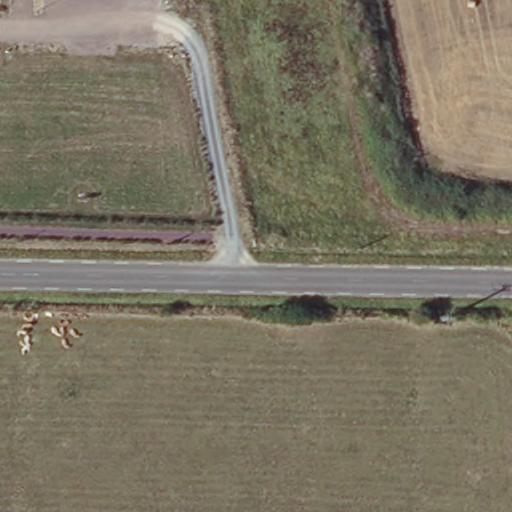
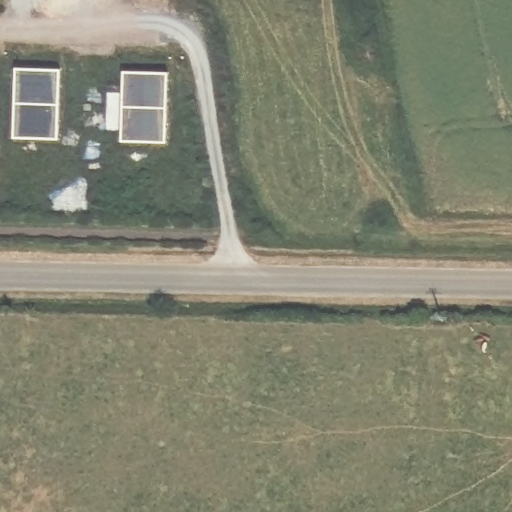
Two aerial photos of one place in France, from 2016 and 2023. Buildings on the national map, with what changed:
new [(15,65),(60,66),(58,142),(13,141),(15,65)]
new [(124,72),(168,73),(167,142),(122,142),(124,72)]

